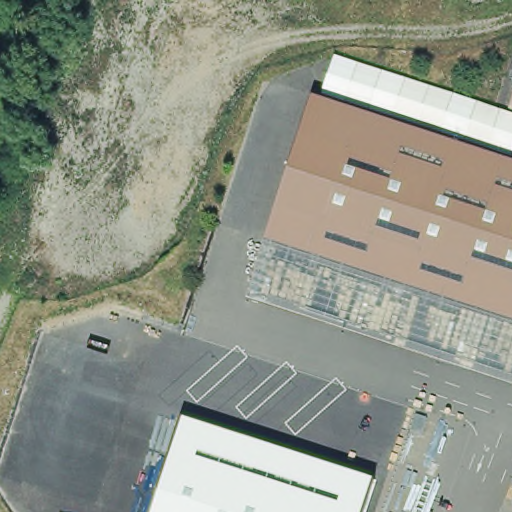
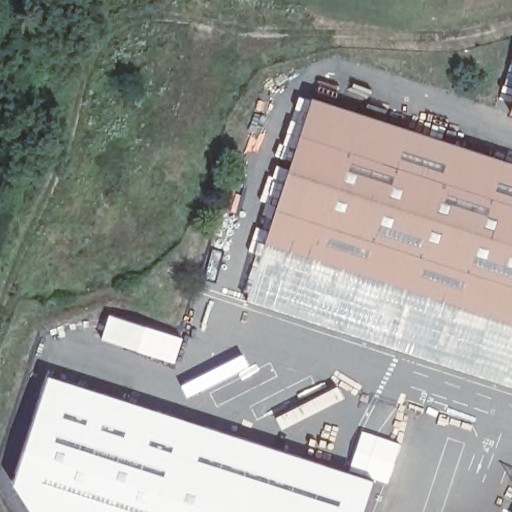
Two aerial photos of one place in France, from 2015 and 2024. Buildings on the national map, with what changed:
unchanged [(316,101),(327,105),(431,139),(502,161),(512,165),(512,327),(500,323),(459,310),(388,287),(283,253),(268,248),(316,101)]
unchanged [(509,110),(512,102),(512,112),(509,110)]
new [(108,312),(184,336),(175,363),(100,337),(108,312)]
new [(153,512),(32,512),(14,484),(49,376),(184,419),(153,512)]
unchanged [(372,480),(362,512),(153,512),(184,419),(372,480)]
new [(361,429),(400,443),(387,483),(348,469),(361,429)]

